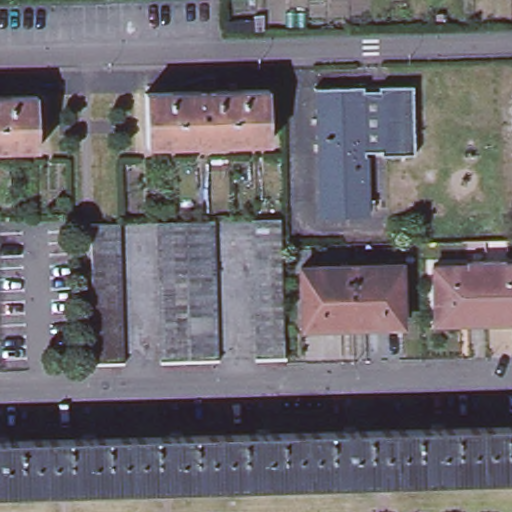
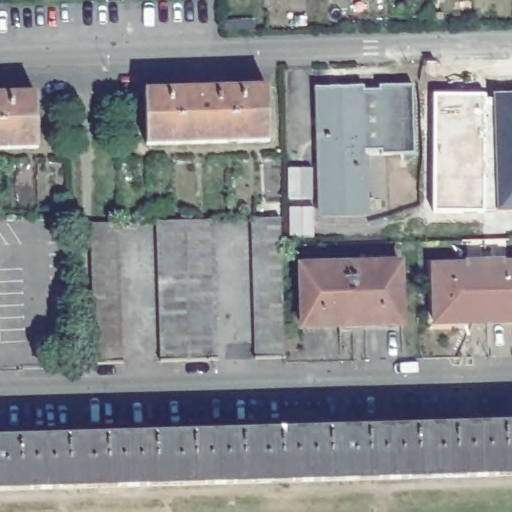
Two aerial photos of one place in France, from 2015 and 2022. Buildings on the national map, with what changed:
unchanged [(202,94),(202,81),(215,81),(215,93),(270,91),(272,144),(148,149),(146,96),(202,94)]
unchanged [(371,88),(372,83),(405,83),(407,152),(373,154),(373,148),(357,149),(355,88),(371,88)]
unchanged [(365,207),(358,206),(358,213),(312,214),(310,85),(355,84),(355,88),(357,149),(357,197),(366,197),(365,207)]
new [(486,99),(496,99),(496,94),(512,93),(512,210),(435,212),(435,94),(486,94),(486,99)]
unchanged [(0,151),(0,98),(37,97),(38,151),(0,151)]
unchanged [(90,315),(90,302),(90,287),(89,274),(88,260),(88,246),(88,233),(87,222),(116,220),(116,232),(116,244),(117,259),(117,273),(118,287),(118,301),(119,315),(120,328),(120,343),(120,358),(92,359),(91,344),(91,329),(90,315)]
unchanged [(259,328),(258,315),(258,302),(257,288),(257,271),(256,258),(256,244),(255,232),(255,221),(282,222),(282,230),(283,243),(283,258),(284,271),(285,287),(285,300),(286,315),(286,327),(287,343),(288,359),(260,359),(260,344),(259,328)]
unchanged [(161,305),(161,291),(160,276),(160,262),(160,248),(159,235),(159,225),(185,224),(215,223),(215,234),(216,247),(216,260),(217,274),(217,288),(218,303),(219,317),(220,330),(220,345),(220,361),(192,361),(163,362),(163,348),(162,332),(162,319),(161,305)]
unchanged [(470,270),(476,270),(476,259),(487,258),(501,258),(501,270),(507,270),(507,264),(512,264),(512,322),(489,323),(439,325),(435,265),(470,264),(470,270)]
unchanged [(405,326),(353,327),(350,267),(405,265),(405,326)]
unchanged [(350,267),(353,327),(305,329),(302,268),(350,267)]
unchanged [(512,425),(512,474),(0,488),(0,438),(512,425)]

